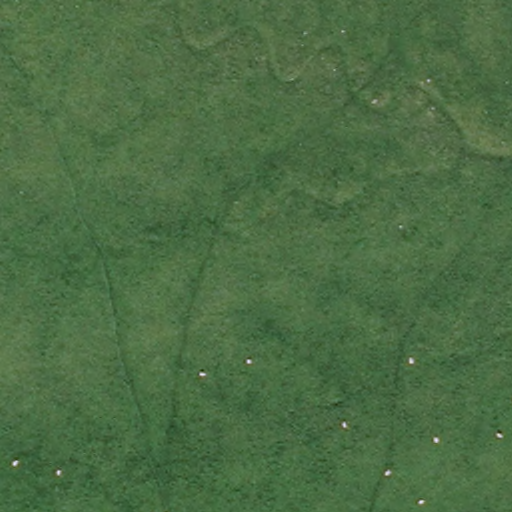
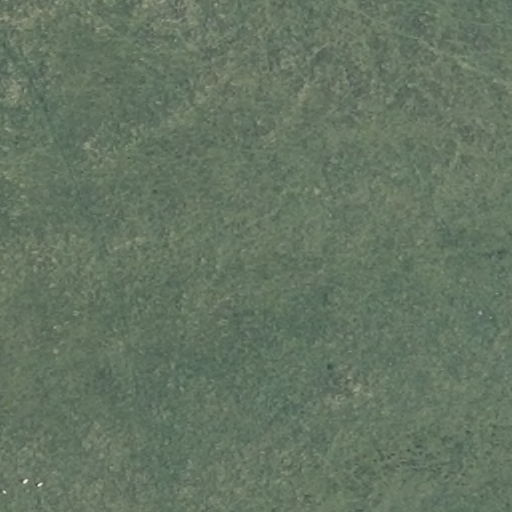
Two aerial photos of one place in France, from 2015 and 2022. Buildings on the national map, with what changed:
[]

